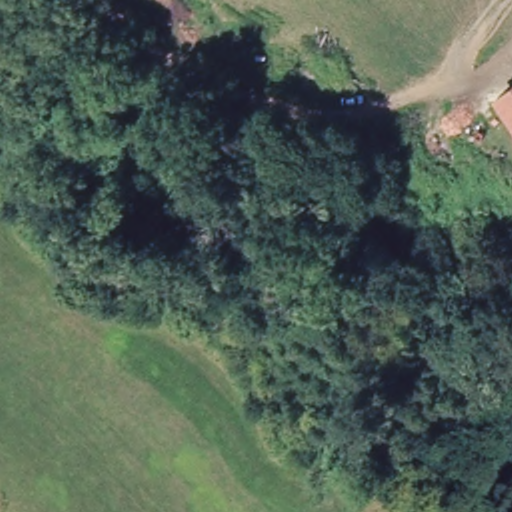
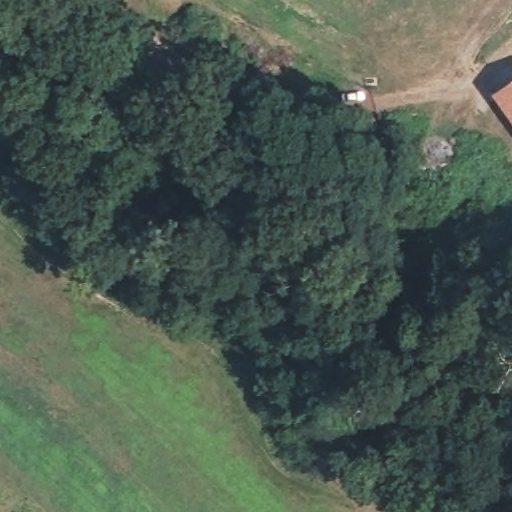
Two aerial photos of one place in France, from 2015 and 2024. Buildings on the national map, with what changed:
unchanged [(512,83),(512,125),(492,99),(512,83)]

